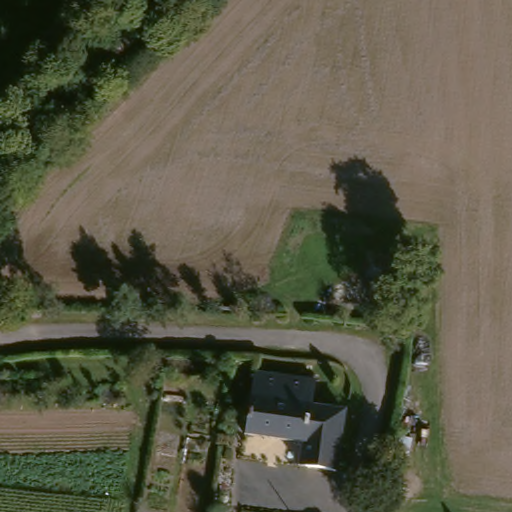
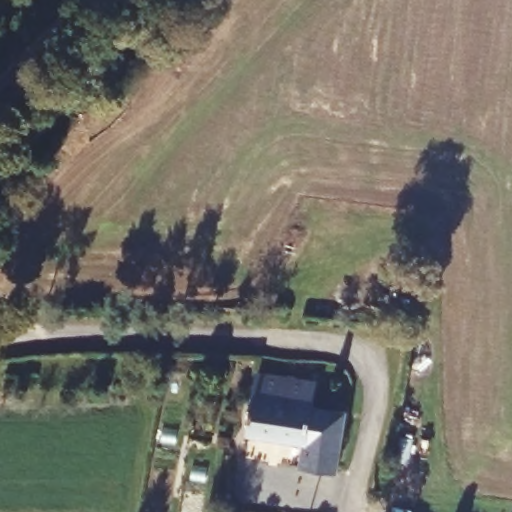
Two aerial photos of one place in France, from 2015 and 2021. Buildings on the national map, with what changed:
unchanged [(321,385),(316,412),(346,415),(337,479),(294,472),(241,465),(244,436),(249,403),(253,377),(321,385)]

